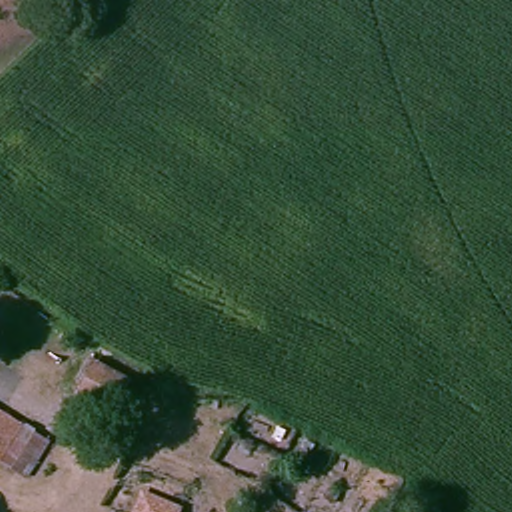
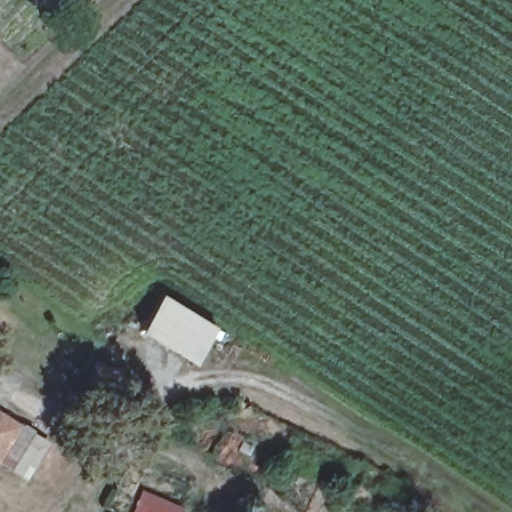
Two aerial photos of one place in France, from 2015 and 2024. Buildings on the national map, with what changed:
new [(138,328),(162,292),(216,325),(194,362),(138,328)]
unchanged [(138,386),(121,421),(83,401),(99,365),(138,386)]
unchanged [(0,408),(30,427),(7,464),(0,459),(0,408)]
unchanged [(189,502),(185,512),(136,512),(145,487),(189,502)]

